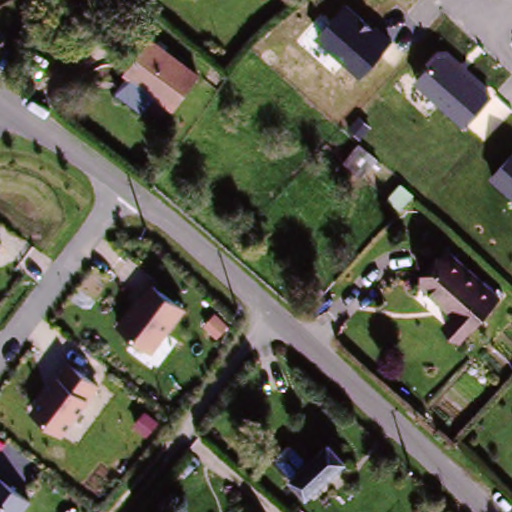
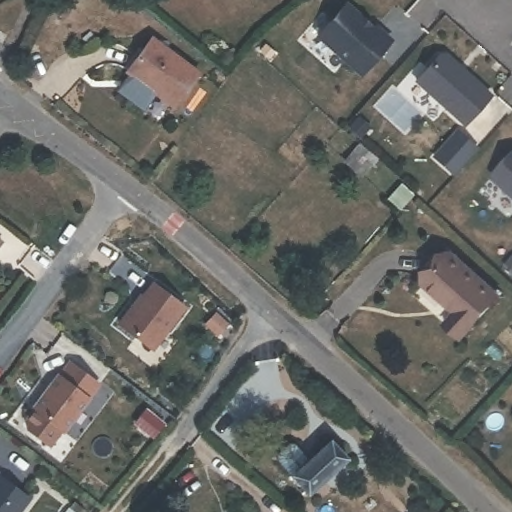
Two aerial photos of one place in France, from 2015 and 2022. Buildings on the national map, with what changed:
unchanged [(360,79),(315,36),(344,4),(394,40),(360,79)]
unchanged [(194,79),(171,107),(125,69),(147,41),(194,79)]
unchanged [(465,129),(412,81),(443,53),(493,95),(465,129)]
unchanged [(491,179),(512,154),(512,197),(491,179)]
unchanged [(446,321),(456,310),(425,282),(453,250),(499,293),(462,335),(446,321)]
unchanged [(188,311),(154,354),(116,323),(152,282),(188,311)]
unchanged [(98,385),(62,435),(30,410),(67,360),(98,385)]
unchanged [(295,477),(279,460),(296,445),(312,462),(332,443),(352,462),(313,497),(295,477)]
unchanged [(22,512),(0,512),(0,475),(31,501),(22,512)]

